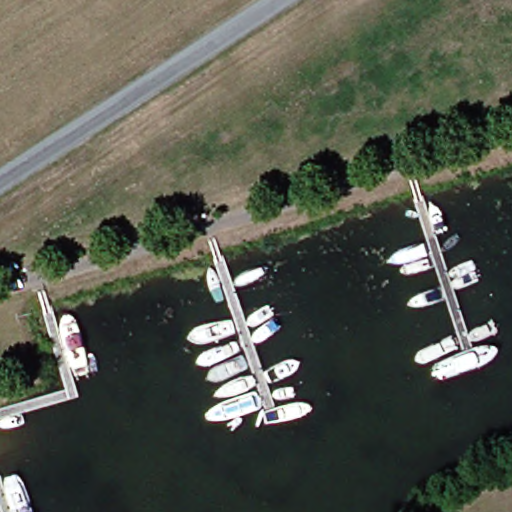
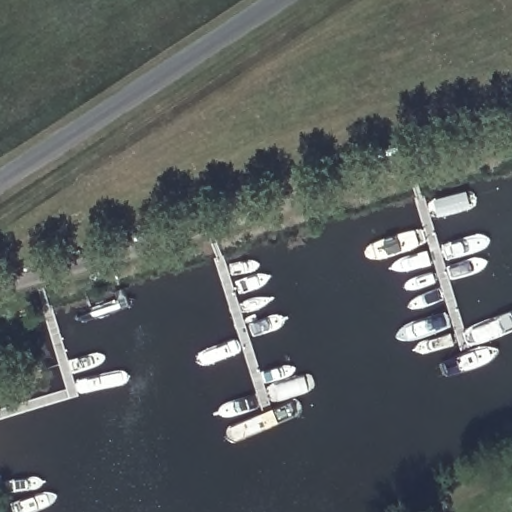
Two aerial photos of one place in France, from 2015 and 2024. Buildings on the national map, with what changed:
[]

